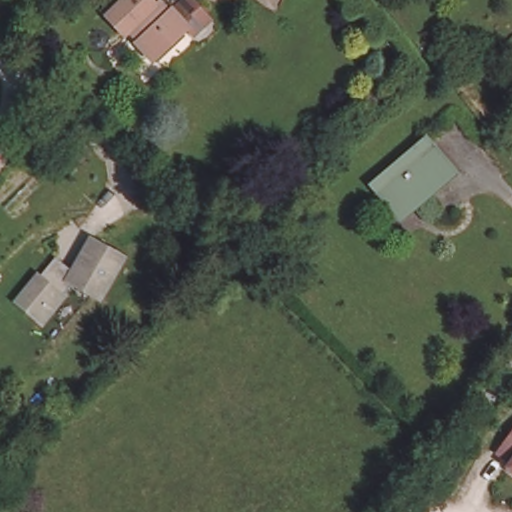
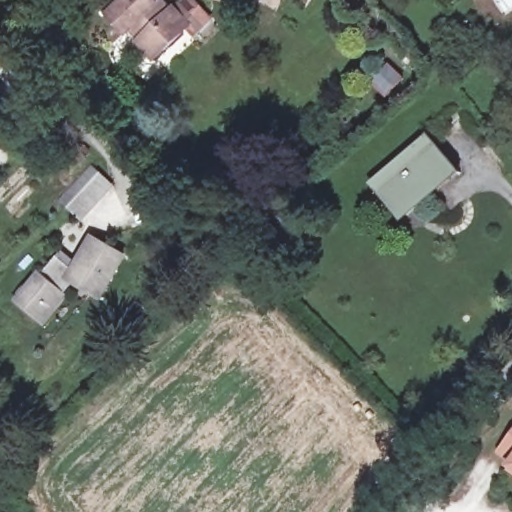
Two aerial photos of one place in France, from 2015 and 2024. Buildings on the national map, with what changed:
unchanged [(151,7),(155,3),(167,17),(171,14),(187,29),(152,63),(136,47),(139,44),(128,34),(122,40),(102,20),(95,12),(108,0),(144,0),(151,7)]
unchanged [(425,133),(455,170),(419,201),(413,195),(393,212),(367,180),(425,133)]
new [(101,162),(120,180),(89,212),(71,195),(101,162)]
unchanged [(35,275),(37,277),(60,249),(75,262),(92,231),(126,250),(101,294),(75,279),(40,322),(14,301),(35,275)]
unchanged [(494,456),(512,432),(512,470),(494,456)]

